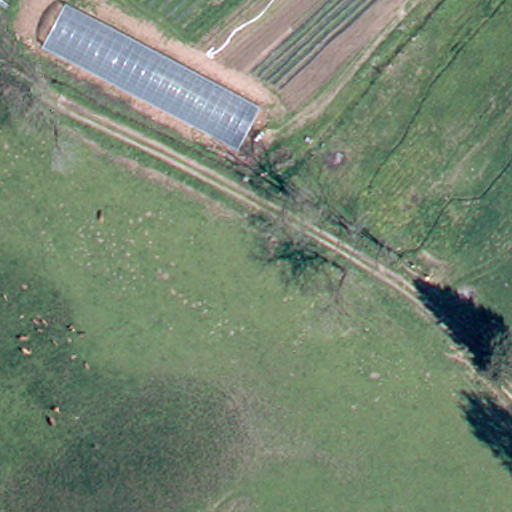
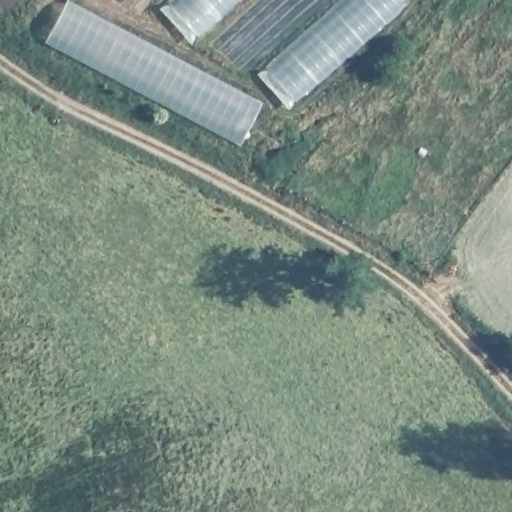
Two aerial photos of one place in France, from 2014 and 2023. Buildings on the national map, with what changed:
unchanged [(261,101),(240,144),(44,40),(67,0),(73,0),(261,101)]
new [(199,37),(170,0),(241,0),(199,37)]
new [(409,3),(297,101),(267,67),(342,0),(406,0),(409,3)]

